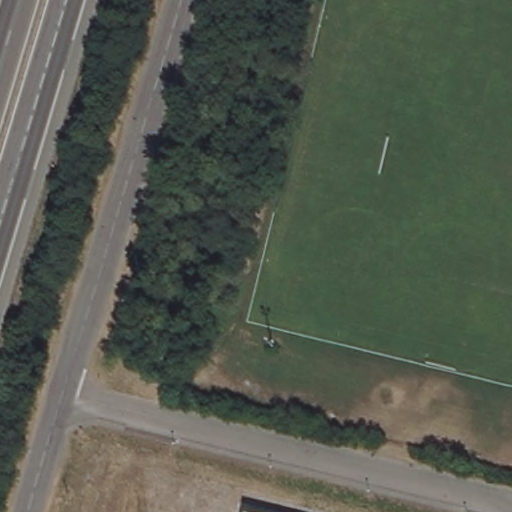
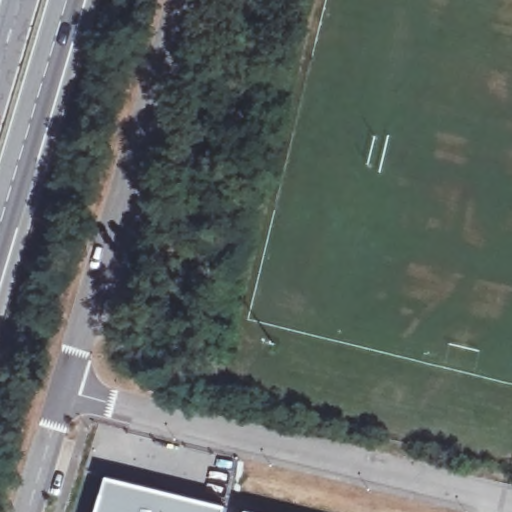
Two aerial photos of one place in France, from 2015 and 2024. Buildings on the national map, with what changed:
new [(225,512),(106,512),(116,482),(226,507),(225,512)]

